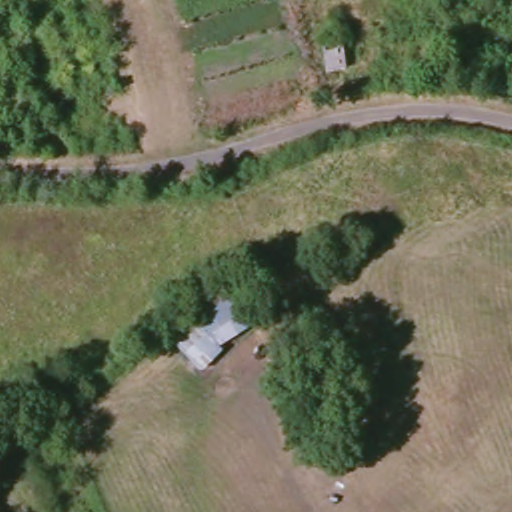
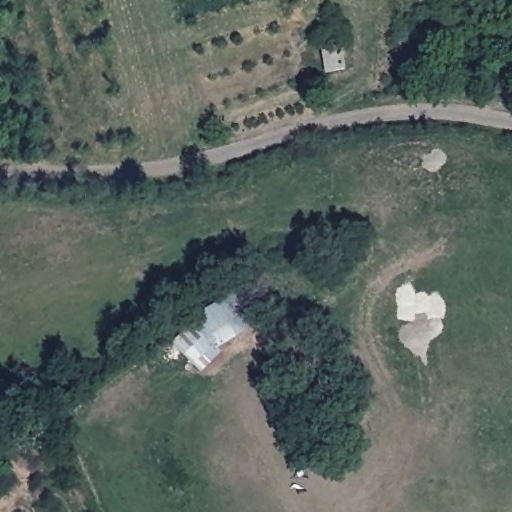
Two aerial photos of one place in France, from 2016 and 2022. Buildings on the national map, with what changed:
unchanged [(344,46),(346,71),(323,72),(322,46),(344,46)]
unchanged [(193,317),(219,298),(242,335),(218,350),(222,353),(201,375),(170,342),(193,317)]

